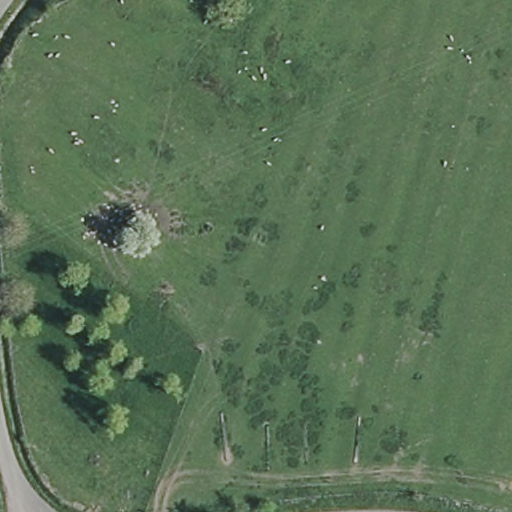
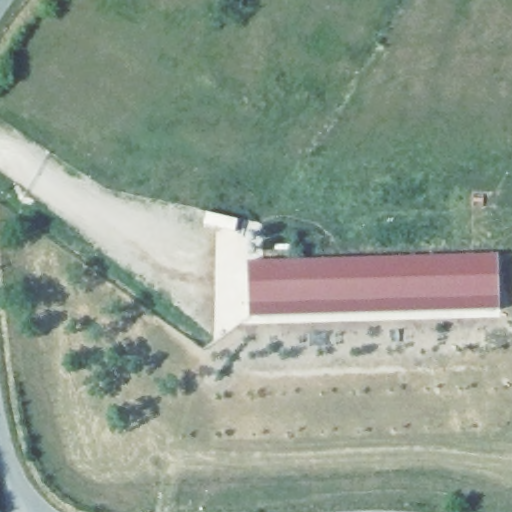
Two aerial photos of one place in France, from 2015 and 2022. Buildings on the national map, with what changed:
new [(494,260),(494,312),(243,317),(242,264),(494,260)]

